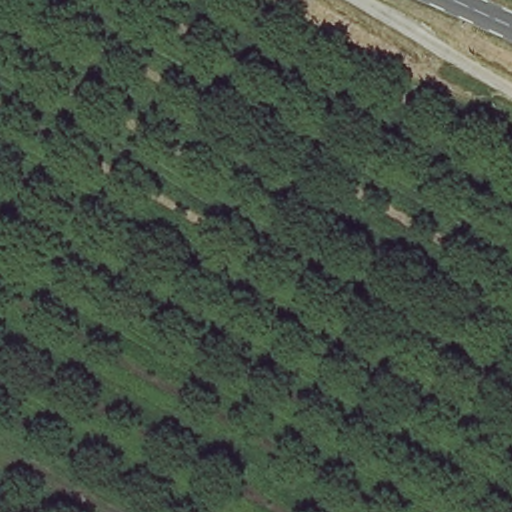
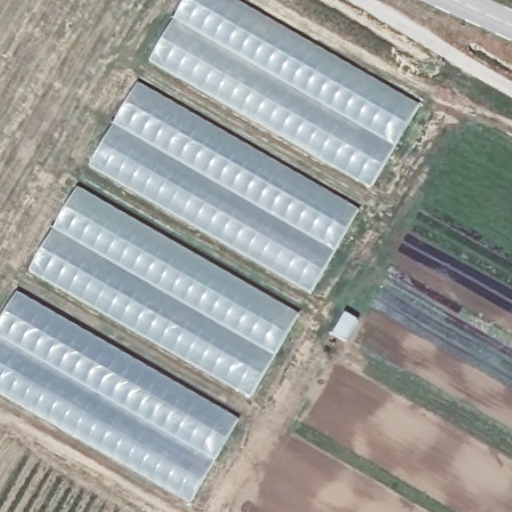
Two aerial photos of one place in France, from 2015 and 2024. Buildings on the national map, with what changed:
new [(372,190),(151,64),(187,0),(236,0),(420,105),(372,190)]
new [(311,296),(91,168),(139,84),(360,212),(311,296)]
new [(31,273),(79,189),(301,315),(252,400),(31,273)]
new [(191,505),(0,394),(0,323),(18,293),(239,421),(191,505)]

